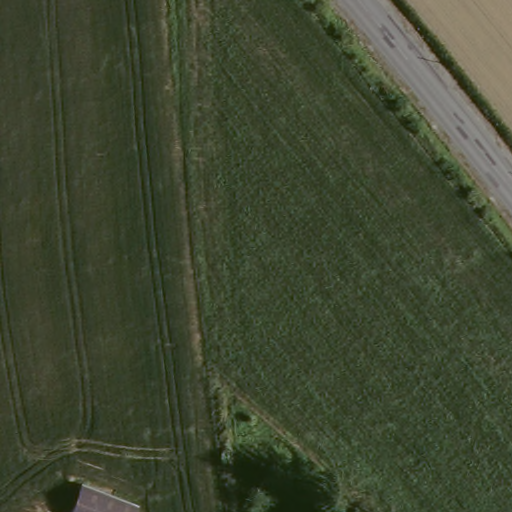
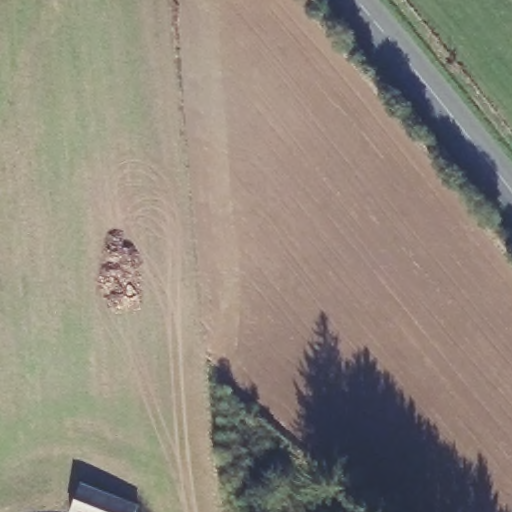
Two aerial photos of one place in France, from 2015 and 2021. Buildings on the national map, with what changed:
unchanged [(86,481),(144,503),(141,512),(76,512),(86,481)]

